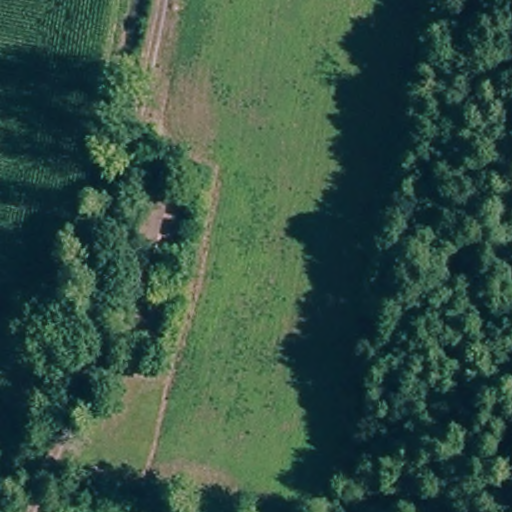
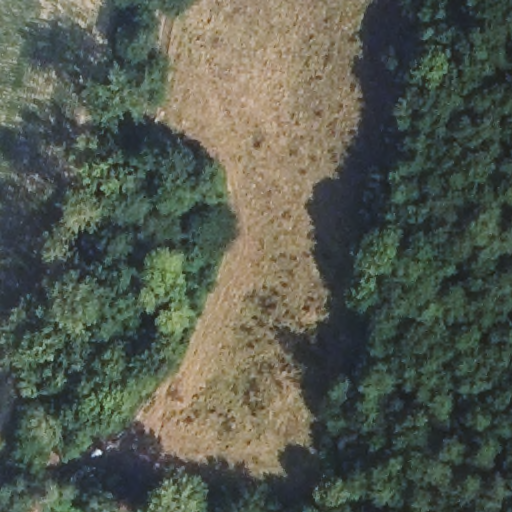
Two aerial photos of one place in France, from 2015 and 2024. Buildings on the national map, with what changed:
unchanged [(122,276),(148,172),(172,177),(147,282),(122,276)]

